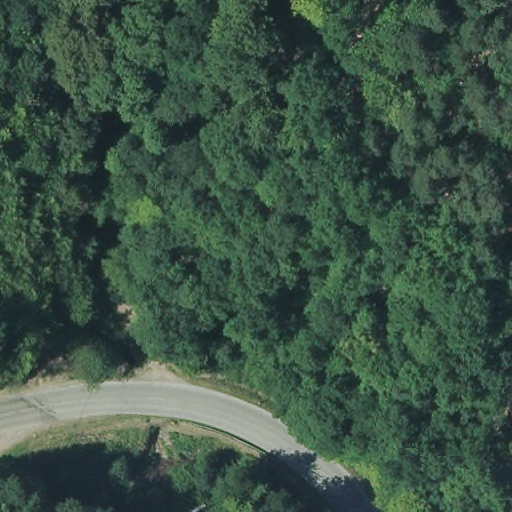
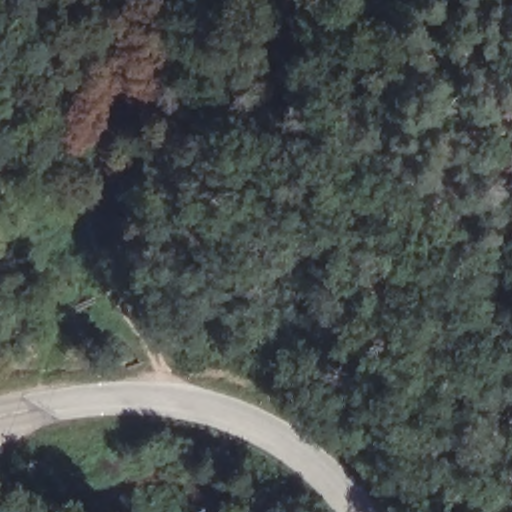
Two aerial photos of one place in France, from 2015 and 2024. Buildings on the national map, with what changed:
unchanged [(218,255),(217,268),(199,268),(198,254),(218,255)]

